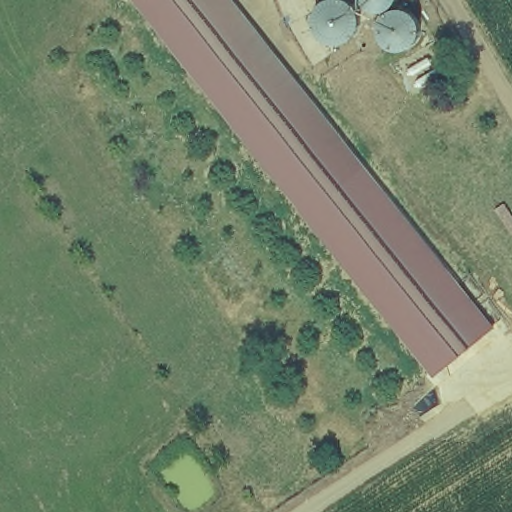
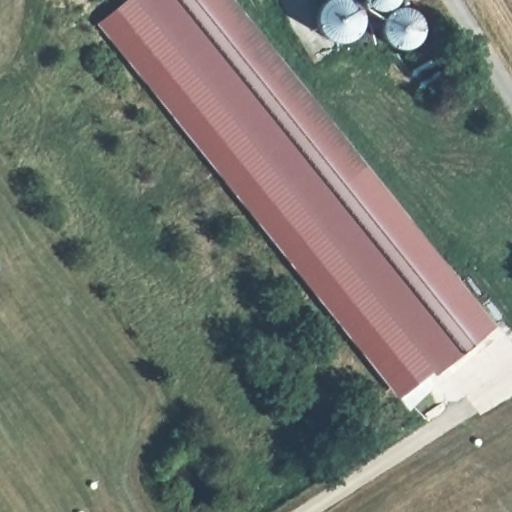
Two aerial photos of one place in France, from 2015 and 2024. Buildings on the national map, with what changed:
new [(397,396),(98,22),(129,0),(146,0),(436,366),(397,396)]
unchanged [(444,376),(146,0),(232,0),(495,333),(444,376)]

